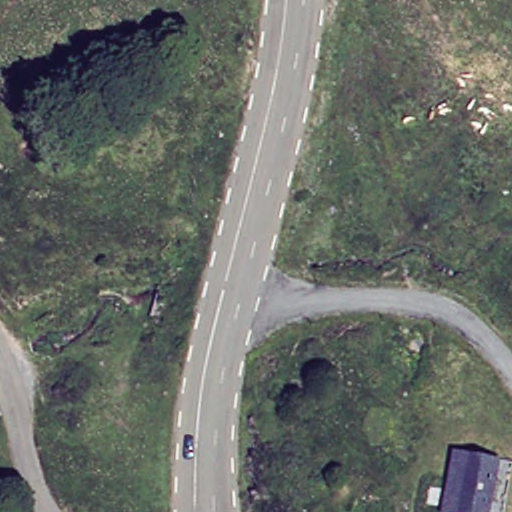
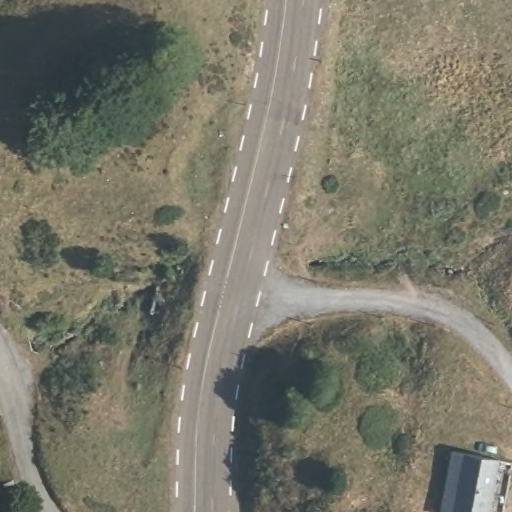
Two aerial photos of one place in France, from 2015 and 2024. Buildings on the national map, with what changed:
unchanged [(493,498),(491,512),(441,512),(452,447),(500,456),(497,478),(502,479),(498,500),(493,498)]

